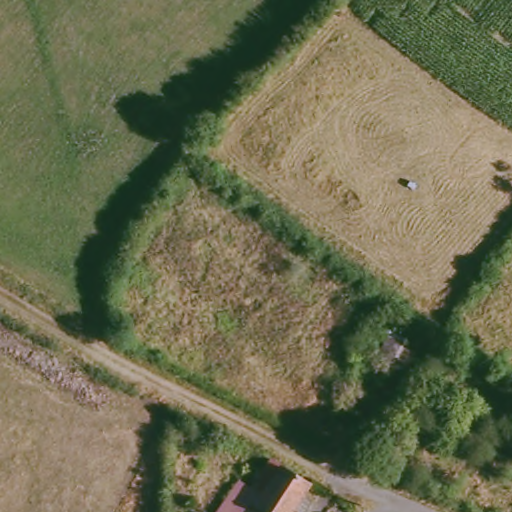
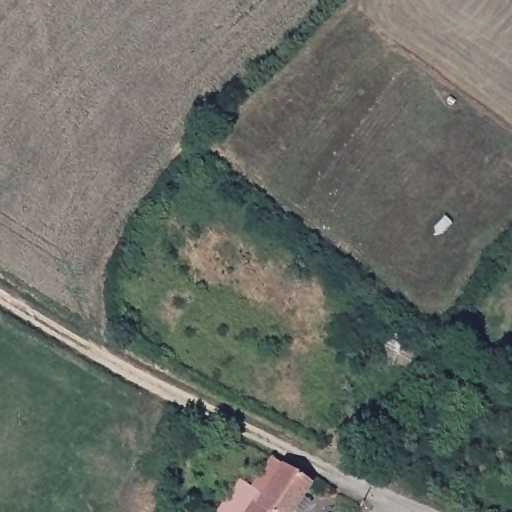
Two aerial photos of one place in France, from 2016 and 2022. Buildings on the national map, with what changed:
unchanged [(407,372),(379,354),(391,335),(400,340),(404,333),(424,347),(407,372)]
unchanged [(222,512),(241,484),(255,492),(275,462),(312,484),(293,512),(222,512)]

